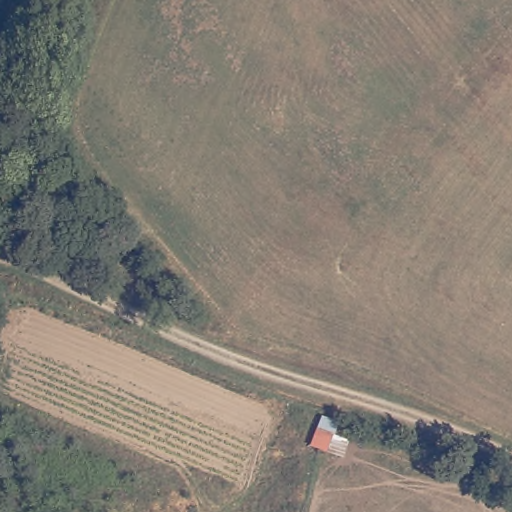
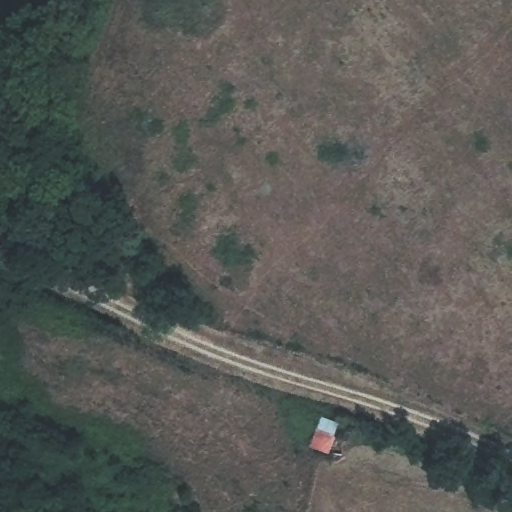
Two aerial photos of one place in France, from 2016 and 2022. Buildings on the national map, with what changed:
unchanged [(311,423),(338,430),(330,450),(303,443),(311,423)]

